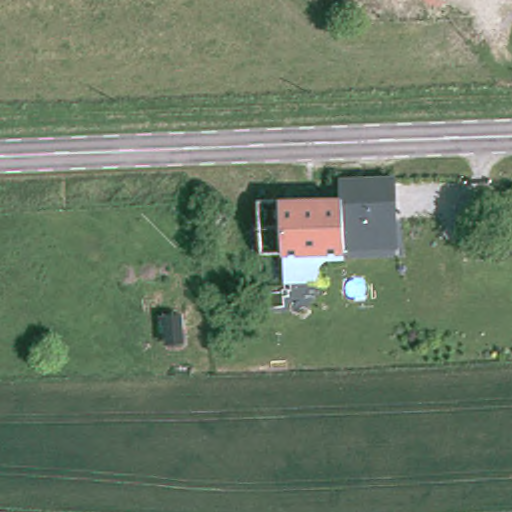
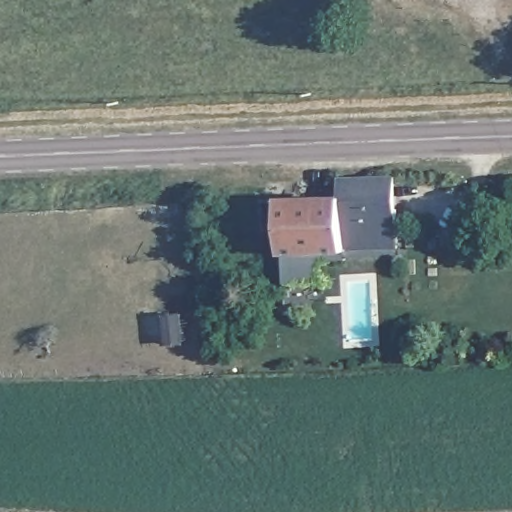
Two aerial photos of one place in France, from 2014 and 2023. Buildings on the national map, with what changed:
unchanged [(402,189),(402,252),(380,253),(378,190),(402,189)]
unchanged [(380,253),(357,254),(355,277),(295,278),(295,207),(354,204),(355,191),(378,190),(380,253)]
unchanged [(267,278),(242,278),(243,200),(267,198),(267,209),(267,278)]
unchanged [(295,278),(267,278),(267,209),(295,207),(295,278)]

